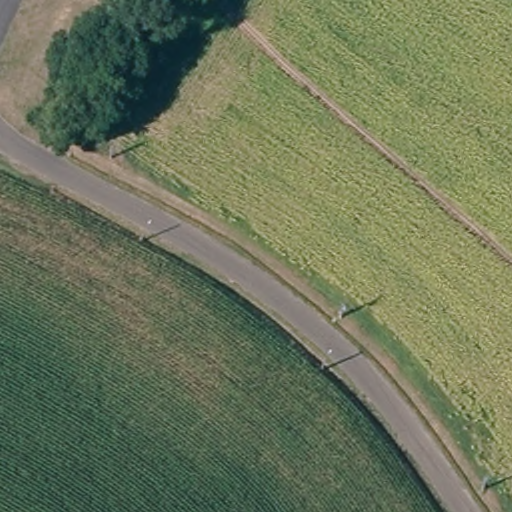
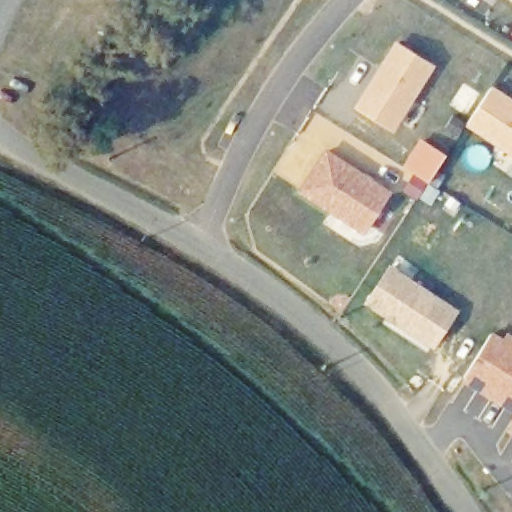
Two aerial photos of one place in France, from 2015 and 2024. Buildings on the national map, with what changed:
new [(512,0),(512,1),(511,0),(512,0)]
new [(354,106),(394,39),(435,66),(394,132),(354,106)]
new [(467,125),(492,85),(512,98),(512,156),(467,125)]
new [(402,167),(421,138),(447,155),(434,176),(442,181),(427,204),(404,190),(414,175),(402,167)]
new [(298,191),(325,147),(391,191),(362,234),(298,191)]
new [(364,303),(389,262),(459,311),(433,351),(364,303)]
new [(462,381),(493,330),(503,336),(508,330),(512,332),(512,414),(462,381)]
new [(508,431),(512,424),(512,434),(508,431)]

